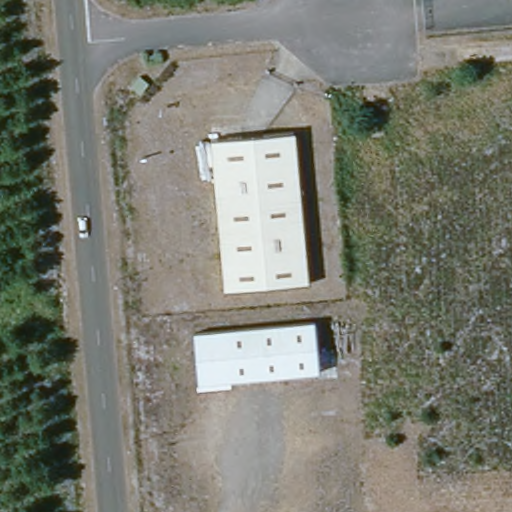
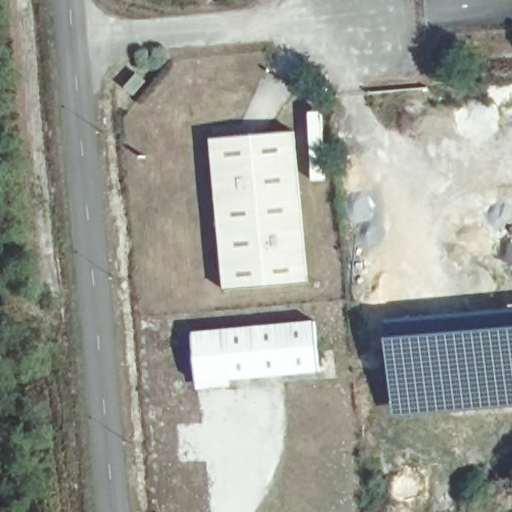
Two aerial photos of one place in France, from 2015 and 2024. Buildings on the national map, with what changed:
unchanged [(307,284),(224,290),(212,136),(295,130),(307,284)]
new [(488,313),(489,318),(475,321),(475,328),(400,334),(399,326),(393,327),(393,321),(488,313)]
unchanged [(319,376),(196,385),(192,335),(315,326),(319,376)]
new [(400,334),(475,328),(512,326),(512,406),(484,408),(392,417),(386,335),(400,334)]

